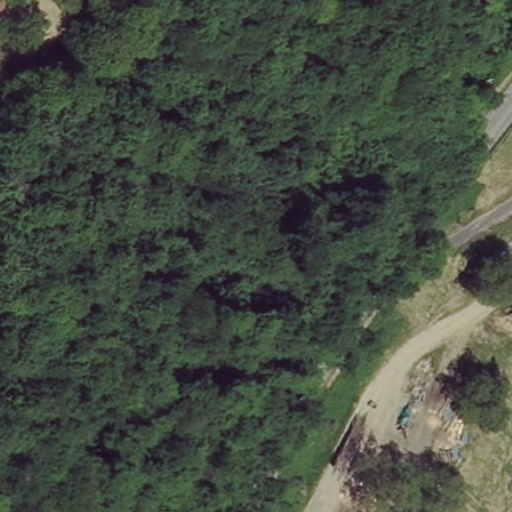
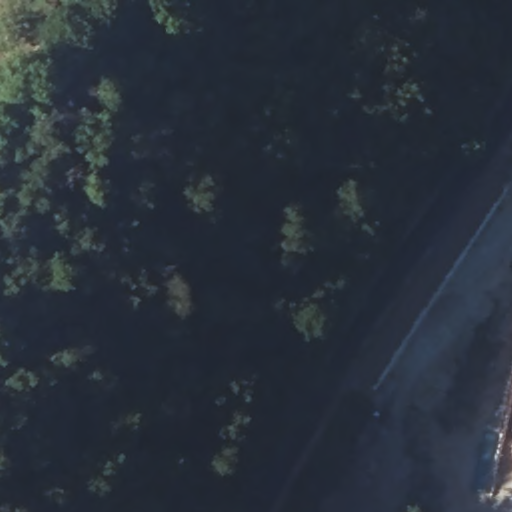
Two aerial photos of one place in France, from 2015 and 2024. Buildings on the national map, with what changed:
[]

